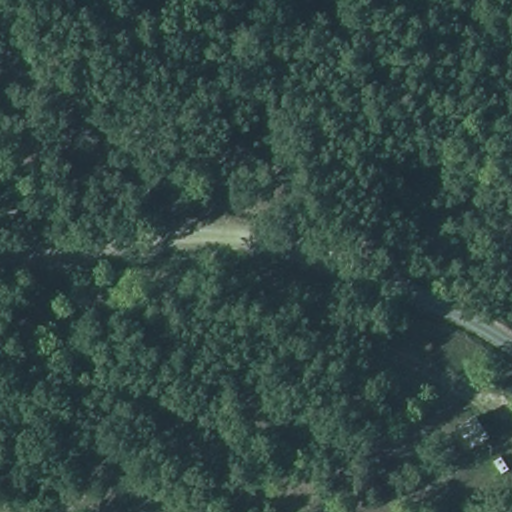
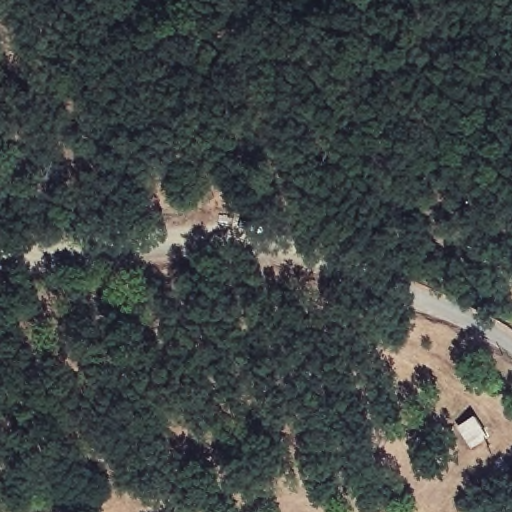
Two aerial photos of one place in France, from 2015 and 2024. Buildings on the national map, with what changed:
unchanged [(492,437),(472,448),(458,427),(477,415),(492,437)]

